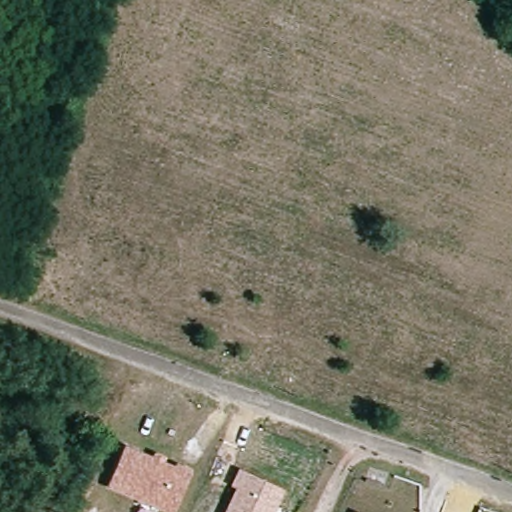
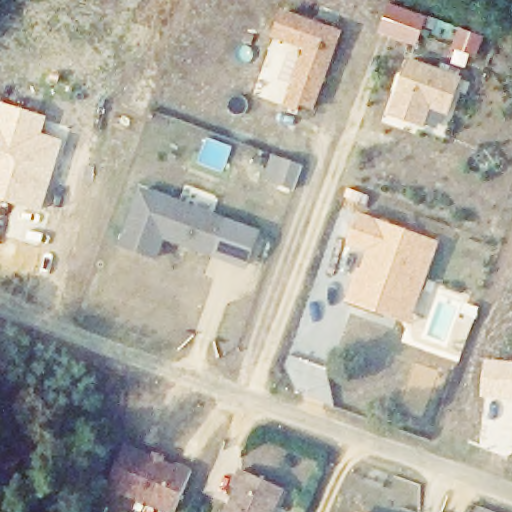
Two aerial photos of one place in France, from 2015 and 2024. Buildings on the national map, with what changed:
new [(378,29),(389,0),(427,12),(417,42),(378,29)]
new [(342,34),(313,111),(300,107),(298,112),(286,108),(305,50),(273,39),(283,9),(342,34)]
new [(388,114),(408,58),(461,76),(448,115),(430,109),(424,126),(388,114)]
new [(43,132),(64,140),(41,212),(0,198),(0,102),(48,117),(43,132)]
new [(227,219),(214,258),(164,242),(158,260),(122,248),(141,187),(227,219)]
new [(439,243),(412,324),(347,302),(358,270),(362,271),(368,252),(348,245),(358,215),(439,243)]
new [(485,358),(512,361),(512,400),(479,397),(485,358)]
unchanged [(125,445),(153,456),(154,453),(165,457),(164,461),(175,467),(176,462),(192,470),(175,512),(164,512),(108,488),(125,445)]
unchanged [(231,485),(240,468),(285,491),(275,512),(224,512),(235,487),(231,485)]

